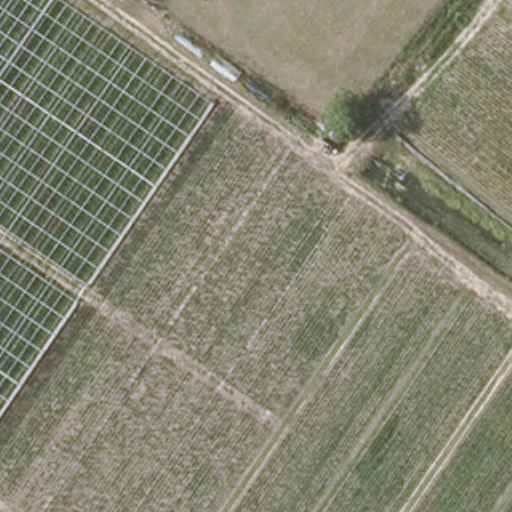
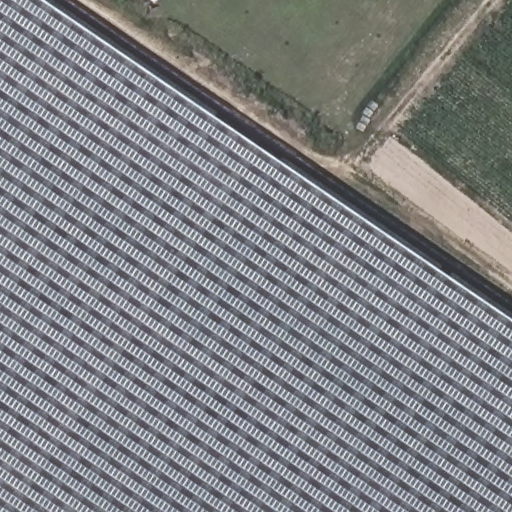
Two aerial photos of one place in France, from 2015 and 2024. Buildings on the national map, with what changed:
new [(512,512),(0,512),(0,0),(43,0),(512,321),(512,512)]

